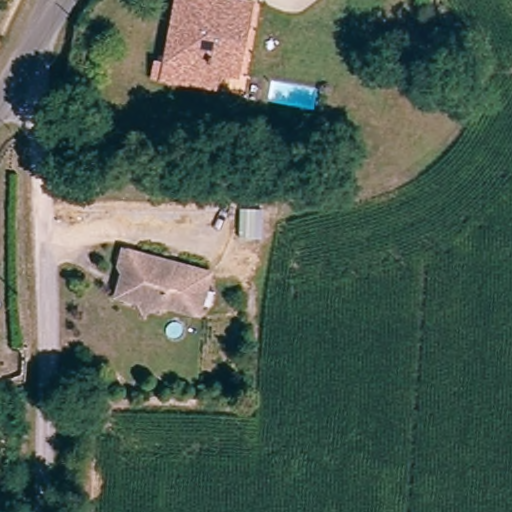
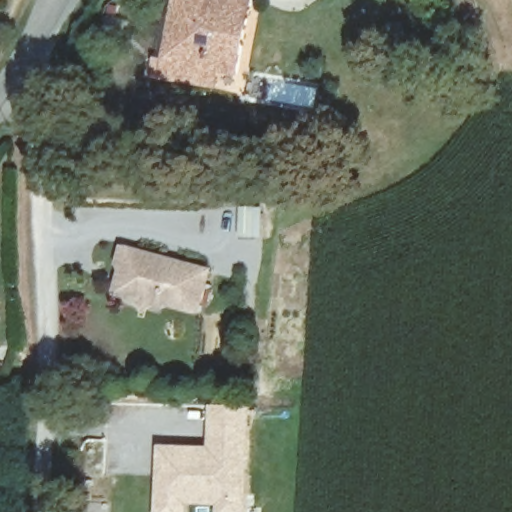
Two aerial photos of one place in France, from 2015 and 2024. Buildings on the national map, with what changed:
unchanged [(231,75),(209,71),(207,85),(157,78),(172,0),(236,0),(246,2),(231,75)]
unchanged [(200,314),(167,303),(165,309),(132,298),(129,281),(125,276),(128,266),(123,263),(129,247),(141,251),(213,274),(200,314)]
new [(208,447),(209,405),(250,406),(248,512),(219,512),(219,507),(188,505),(188,512),(156,512),(158,445),(208,447)]

